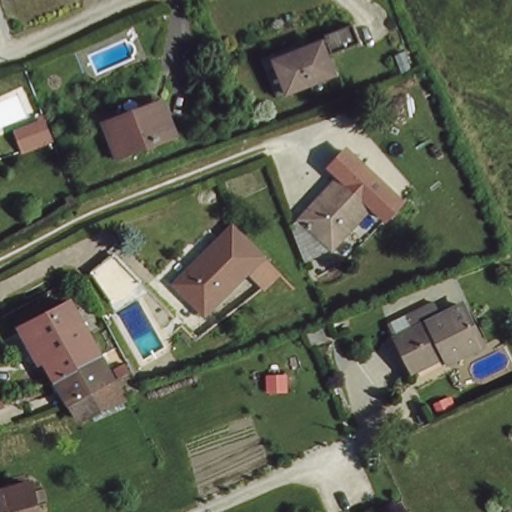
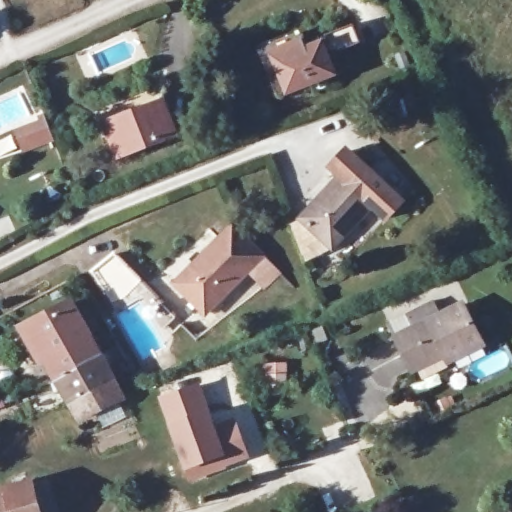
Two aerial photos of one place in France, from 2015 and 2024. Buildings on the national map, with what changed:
unchanged [(352,25),(360,44),(332,55),(324,36),(352,25)]
unchanged [(332,74),(280,95),(270,69),(322,48),(332,74)]
unchanged [(172,137),(118,158),(107,128),(161,109),(172,137)]
new [(56,142),(29,153),(25,143),(20,133),(37,126),(47,122),(56,142)]
unchanged [(388,190),(329,251),(298,222),(358,161),(388,190)]
unchanged [(234,219),(284,270),(262,295),(247,279),(207,317),(171,286),(234,219)]
unchanged [(127,273),(113,291),(101,293),(80,273),(98,250),(127,273)]
unchanged [(485,339),(452,357),(445,348),(417,364),(400,334),(463,300),(485,339)]
unchanged [(27,327),(65,302),(97,352),(58,377),(27,327)]
unchanged [(83,416),(75,403),(58,377),(97,352),(113,377),(122,391),(83,416)]
new [(225,463),(222,452),(185,464),(163,397),(198,385),(212,429),(233,420),(246,455),(225,463)]
unchanged [(44,512),(0,512),(0,496),(37,485),(44,512)]

